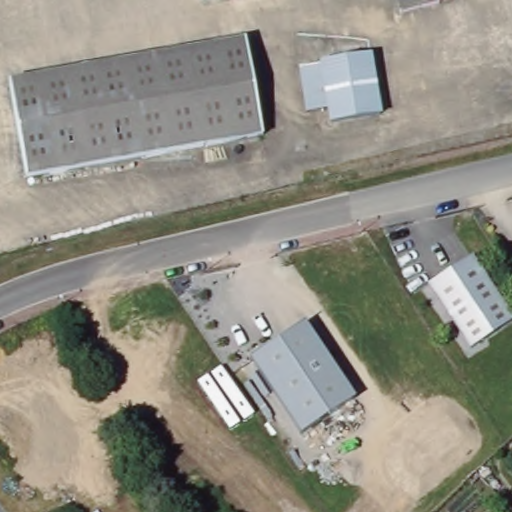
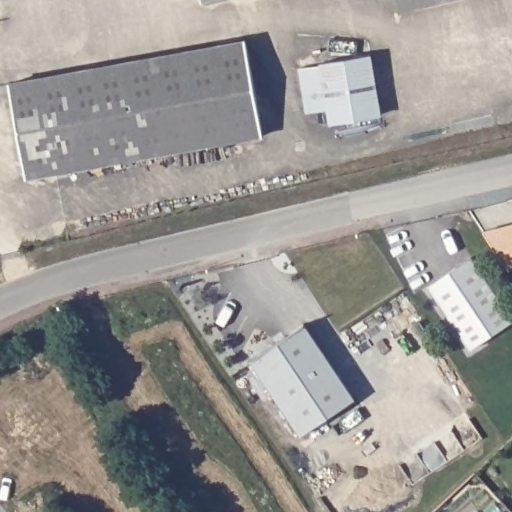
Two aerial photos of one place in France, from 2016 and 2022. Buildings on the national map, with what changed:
unchanged [(201,0),(205,0),(201,1),(201,0)]
unchanged [(397,0),(452,0),(401,14),(397,0)]
unchanged [(4,88),(240,45),(257,139),(21,182),(12,135),(4,88)]
unchanged [(301,69),(321,65),(321,64),(346,59),(370,55),(380,114),(330,123),(328,110),(308,114),(301,69)]
unchanged [(512,317),(512,320),(470,347),(428,283),(471,255),(512,317)]
unchanged [(304,323),(354,399),(299,434),(250,359),(304,323)]

